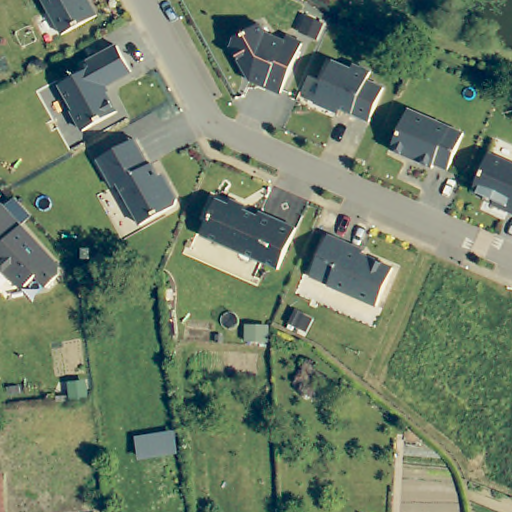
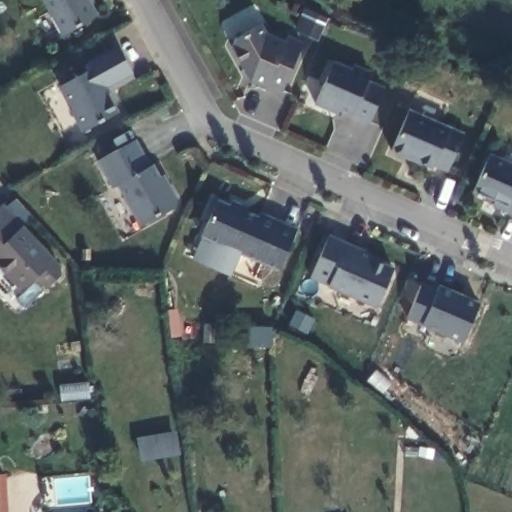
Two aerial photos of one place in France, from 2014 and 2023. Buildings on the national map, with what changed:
unchanged [(64,30),(47,0),(92,0),(99,11),(64,30)]
unchanged [(290,34),(305,40),(284,90),(249,74),(234,37),(237,31),(264,20),(269,31),(288,40),(290,34)]
unchanged [(133,66),(104,82),(118,107),(84,126),(74,106),(75,105),(62,80),(93,64),(89,58),(119,41),(133,66)]
unchanged [(333,60),(351,68),(354,64),(371,72),(367,79),(384,88),(369,123),(351,115),(339,110),(337,114),(314,105),(333,60)]
unchanged [(439,162),(438,165),(397,147),(414,107),(469,131),(453,168),(439,162)]
unchanged [(166,183),(170,181),(178,195),(177,201),(141,221),(119,180),(114,182),(99,155),(111,149),(136,135),(150,161),(153,160),(166,183)]
unchanged [(491,195),(479,189),(494,152),(512,160),(512,208),(499,202),(489,198),(491,195)]
unchanged [(213,216),(209,215),(218,195),(234,202),(235,197),(245,201),(248,207),(262,214),(264,210),(300,225),(283,266),(205,233),(213,216)]
unchanged [(60,272),(46,285),(36,275),(25,285),(18,285),(0,265),(0,203),(1,202),(60,265),(60,272)]
unchanged [(367,249),(366,252),(397,266),(380,304),(314,275),(332,234),(351,242),(367,249)]
new [(408,319),(421,283),(436,290),(439,285),(481,302),(463,343),(408,319)]
unchanged [(144,453),(141,436),(175,431),(177,449),(144,453)]
unchanged [(7,512),(0,512),(0,479),(5,479),(7,512)]

